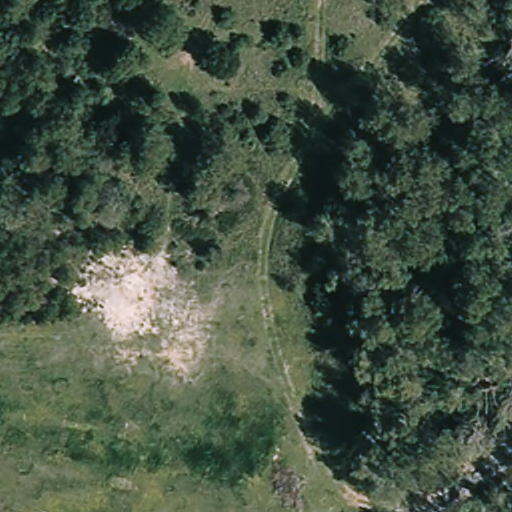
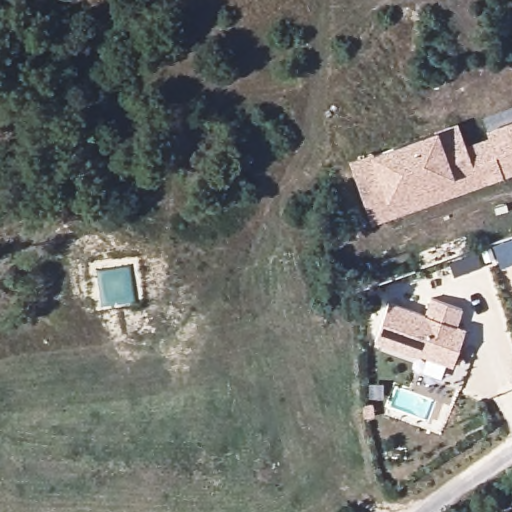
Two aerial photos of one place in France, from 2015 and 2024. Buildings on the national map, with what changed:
new [(464,147),(487,140),(485,134),(512,125),(512,169),(500,173),(497,165),(466,176),(462,167),(385,193),(389,201),(365,208),(349,161),(457,124),(464,147)]
new [(389,201),(385,193),(462,167),(466,176),(497,165),(500,173),(369,218),(365,208),(389,201)]
new [(474,235),(479,251),(415,273),(409,257),(474,235)]
new [(392,306),(425,319),(431,302),(460,313),(453,329),(462,333),(450,367),(422,357),(420,358),(378,342),(392,306)]

